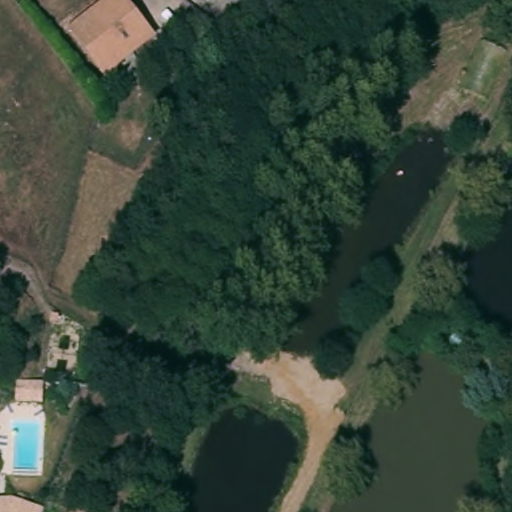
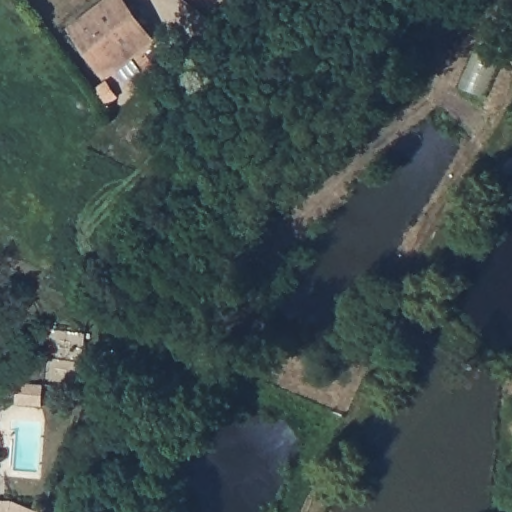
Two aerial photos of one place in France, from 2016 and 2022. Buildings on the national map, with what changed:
unchanged [(67,26),(104,0),(127,0),(156,39),(104,77),(67,26)]
unchanged [(46,509),(45,512),(0,512),(0,499),(15,498),(46,509)]

